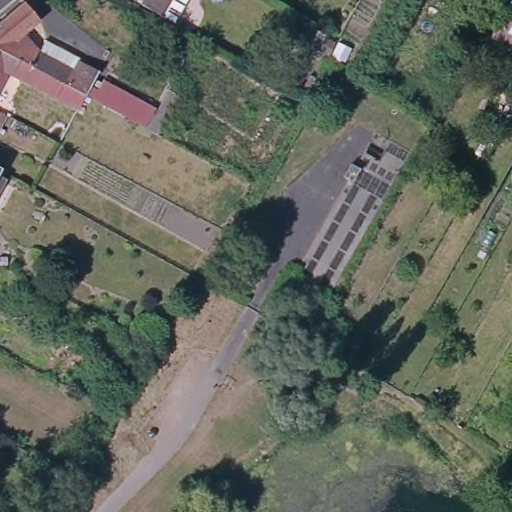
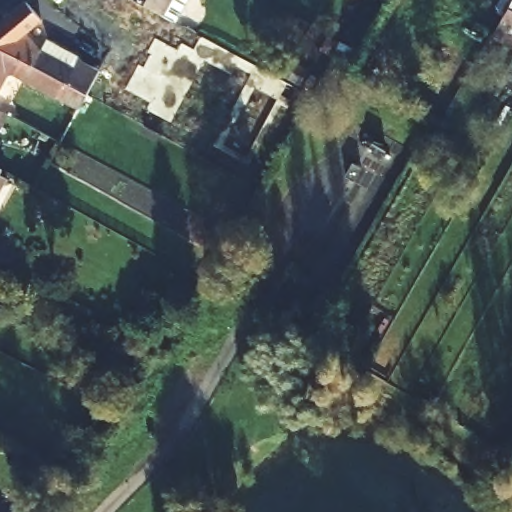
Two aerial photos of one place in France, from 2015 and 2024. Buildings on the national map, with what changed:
unchanged [(130,0),(180,0),(169,21),(130,0)]
unchanged [(507,0),(512,0),(512,50),(487,35),(507,0)]
unchanged [(77,63),(78,62),(98,72),(85,96),(0,51),(0,23),(24,3),(26,6),(39,21),(23,35),(39,54),(41,55),(46,45),(77,63)]
unchanged [(85,96),(78,109),(55,96),(53,99),(7,75),(0,88),(0,51),(85,96)]
unchanged [(157,100),(167,84),(175,89),(161,126),(107,103),(122,81),(157,100)]
unchanged [(0,126),(0,115),(5,117),(0,126)]
unchanged [(136,387),(127,402),(116,396),(124,381),(136,387)]

